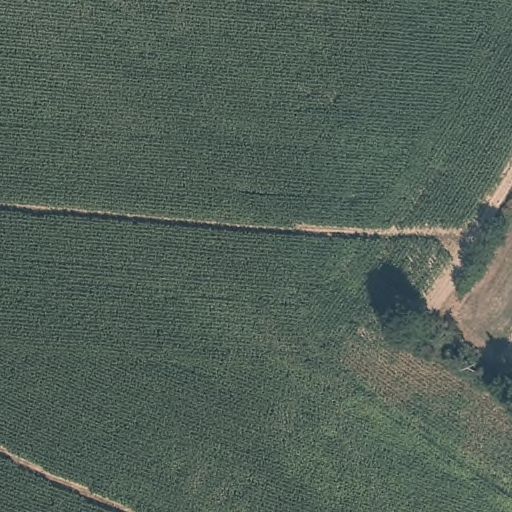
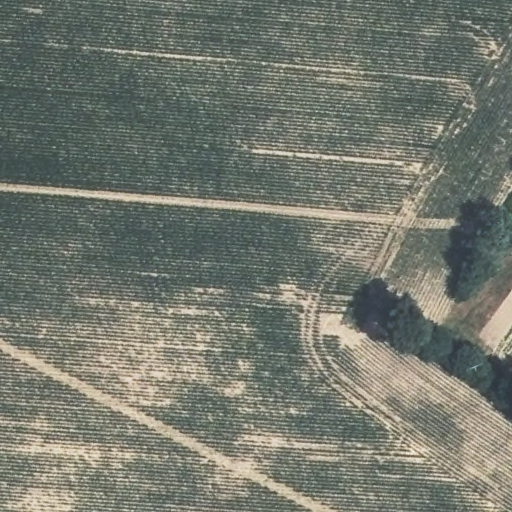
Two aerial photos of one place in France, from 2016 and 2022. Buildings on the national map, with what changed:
[]

